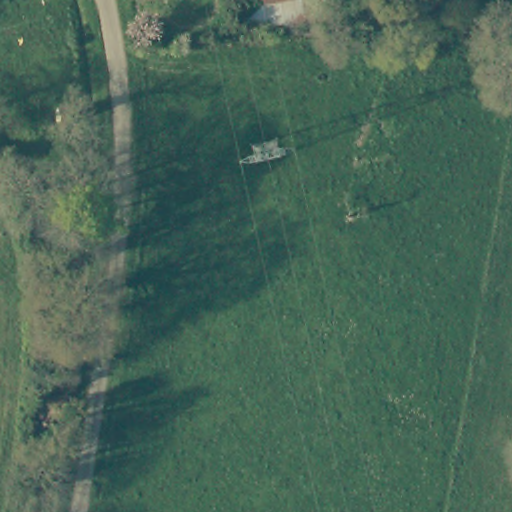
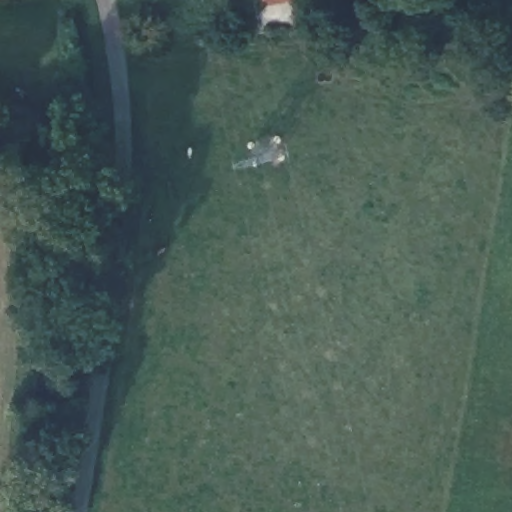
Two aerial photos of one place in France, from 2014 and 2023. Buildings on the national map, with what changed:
unchanged [(246,25),(242,0),(308,0),(310,18),(246,25)]

